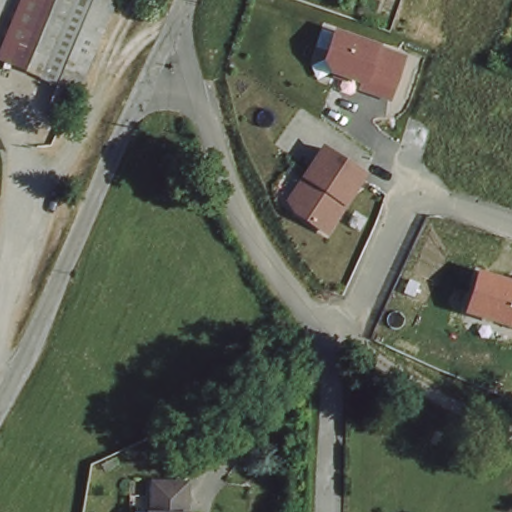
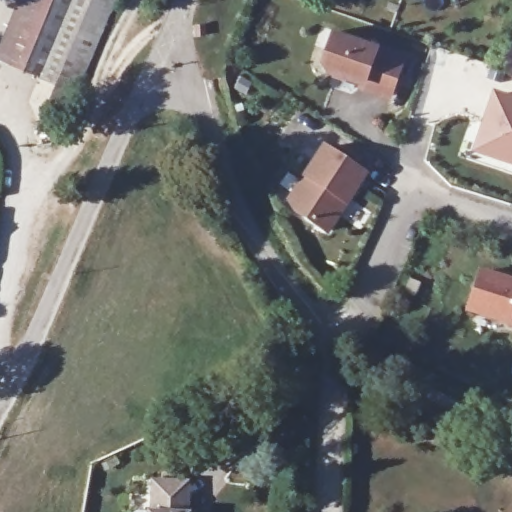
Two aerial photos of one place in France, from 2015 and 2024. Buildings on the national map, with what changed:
unchanged [(36,0),(71,0),(43,72),(13,59),(36,0)]
unchanged [(43,72),(71,0),(95,0),(65,80),(43,72)]
unchanged [(95,0),(116,0),(76,102),(58,96),(65,80),(95,0)]
unchanged [(408,55),(393,102),(359,91),(361,84),(331,74),(326,62),(336,29),(381,44),(408,55)]
new [(474,151),(494,88),(512,94),(512,164),(474,151)]
unchanged [(328,239),(282,209),(325,145),(371,173),(328,239)]
unchanged [(512,281),(512,326),(467,313),(478,269),(512,281)]
unchanged [(155,498),(158,498),(159,469),(189,469),(187,497),(195,498),(194,512),(154,512),(155,498)]

